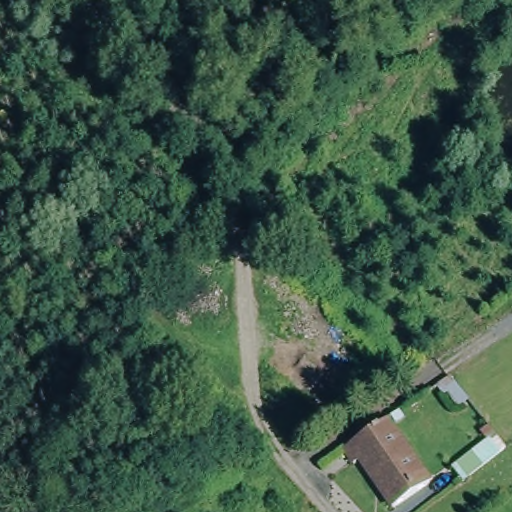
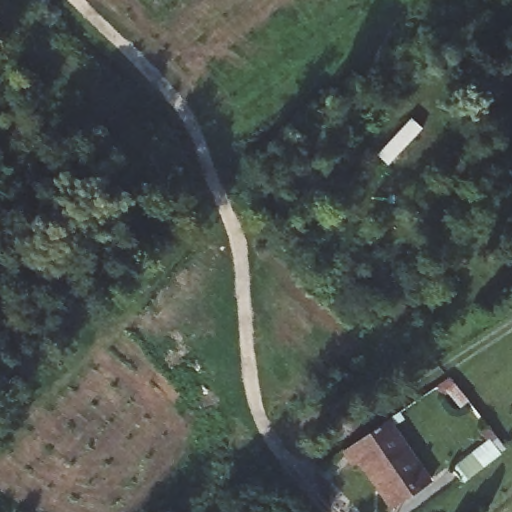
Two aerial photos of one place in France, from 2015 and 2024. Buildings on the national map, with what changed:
unchanged [(390,421),(434,483),(397,508),(365,460),(359,464),(348,450),(390,421)]
unchanged [(512,460),(472,491),(461,478),(497,450),(490,442),(497,436),(512,455),(512,460)]

